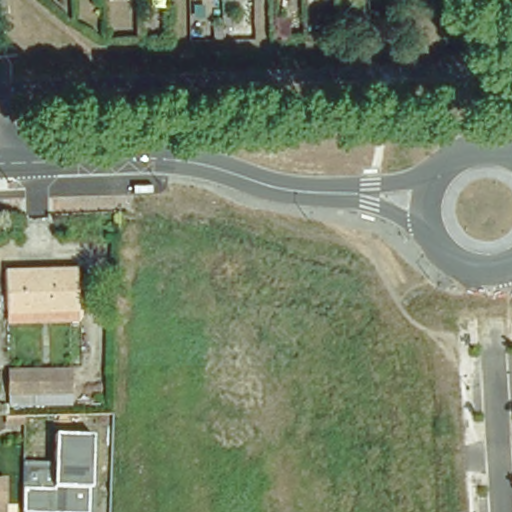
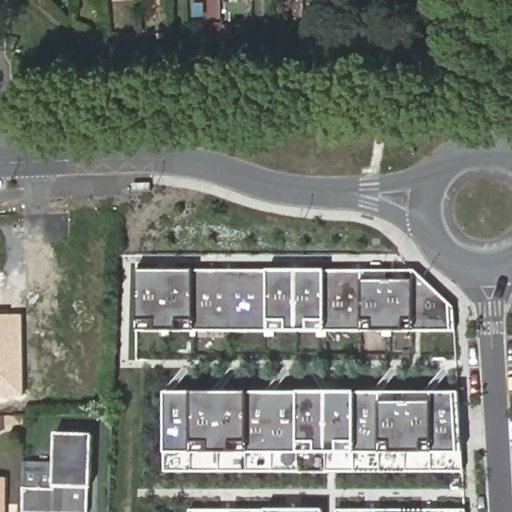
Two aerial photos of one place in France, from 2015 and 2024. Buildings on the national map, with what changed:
demolished [(5,309),(5,269),(78,269),(79,309),(5,309)]
new [(415,271),(454,308),(455,331),(137,330),(137,271),(415,271)]
new [(23,315),(24,398),(0,398),(0,316),(23,315)]
demolished [(78,376),(79,399),(18,399),(18,377),(78,376)]
new [(459,394),(463,471),(172,466),(173,388),(459,394)]
unchanged [(91,489),(88,512),(23,512),(24,461),(54,464),(55,434),(93,436),(91,489)]
unchanged [(3,512),(0,512),(0,481),(3,481),(3,512)]
new [(322,509),(322,512),(188,512),(188,509),(322,509)]
new [(465,510),(466,512),(334,512),(334,509),(465,510)]

